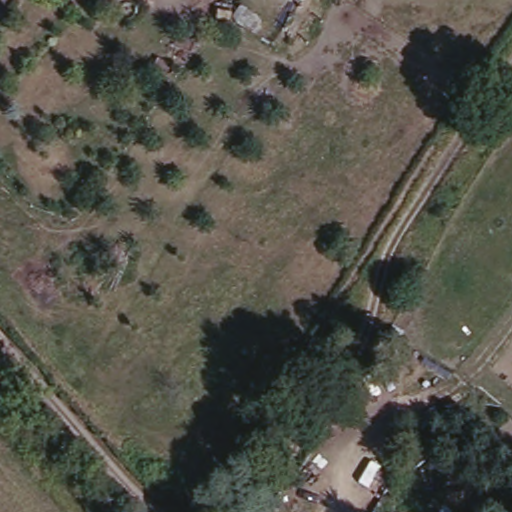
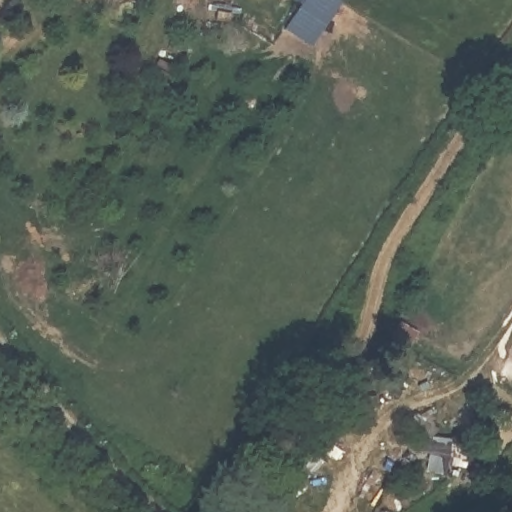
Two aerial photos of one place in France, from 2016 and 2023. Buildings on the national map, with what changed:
new [(311,44),(285,28),(302,0),(341,0),(311,44)]

